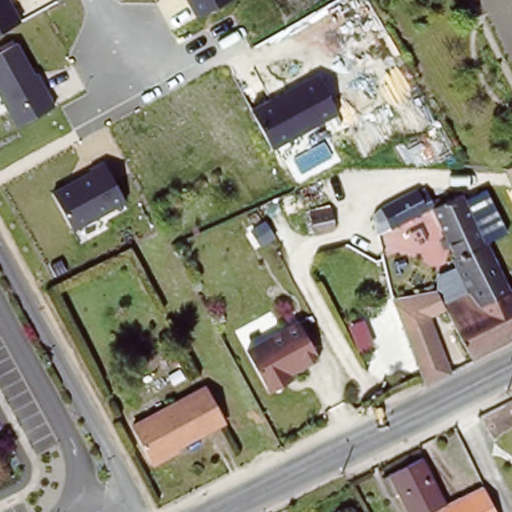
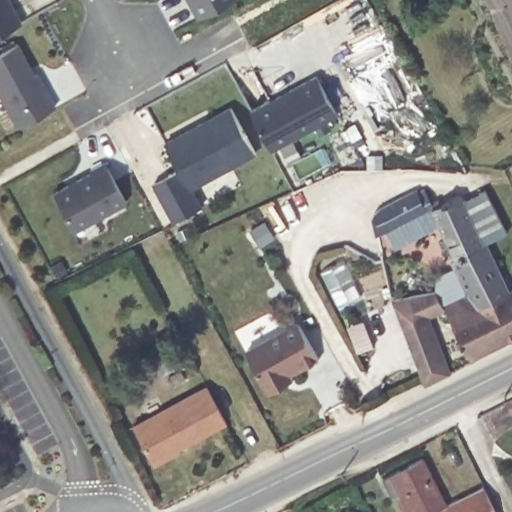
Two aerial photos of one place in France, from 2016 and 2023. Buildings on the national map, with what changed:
unchanged [(21,22),(0,34),(0,0),(9,0),(21,22)]
unchanged [(198,18),(188,0),(228,0),(198,18)]
unchanged [(19,127),(0,94),(0,52),(20,43),(55,107),(19,127)]
unchanged [(338,114),(275,148),(253,109),(320,74),(338,114)]
new [(178,171),(167,145),(232,110),(257,155),(193,188),(202,206),(173,221),(153,184),(178,171)]
unchanged [(126,202),(74,227),(55,191),(106,165),(126,202)]
unchanged [(454,261),(457,259),(431,210),(402,226),(377,237),(372,218),(385,206),(417,189),(419,193),(426,189),(433,202),(440,199),(442,205),(461,196),(485,245),(487,244),(512,294),(511,294),(512,296),(484,309),(470,295),(454,261)]
unchanged [(285,200),(294,196),(297,207),(289,211),(285,200)]
demolished [(310,215),(332,212),(335,231),(314,234),(310,215)]
unchanged [(445,307),(447,311),(429,319),(447,364),(452,375),(427,388),(422,376),(393,301),(437,292),(445,307)]
unchanged [(511,294),(512,294),(512,296),(511,294)]
unchanged [(472,360),(468,353),(447,311),(445,307),(470,295),(484,309),(512,296),(512,341),(474,359),(472,360)]
unchanged [(315,366),(284,380),(287,387),(269,395),(265,389),(262,391),(240,349),(294,327),(315,366)]
unchanged [(207,387),(229,428),(152,467),(135,422),(207,387)]
unchanged [(420,459),(443,505),(482,486),(495,512),(408,512),(390,474),(420,459)]

